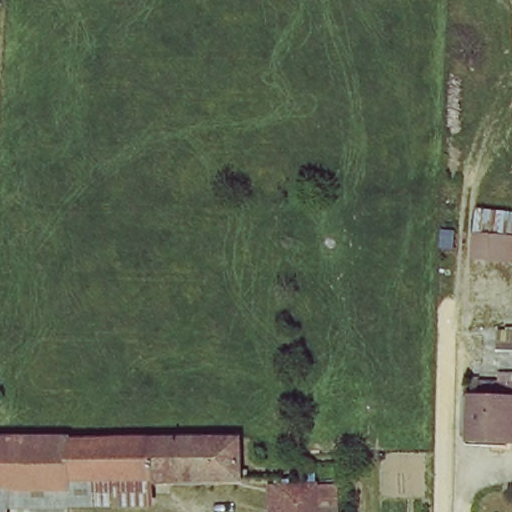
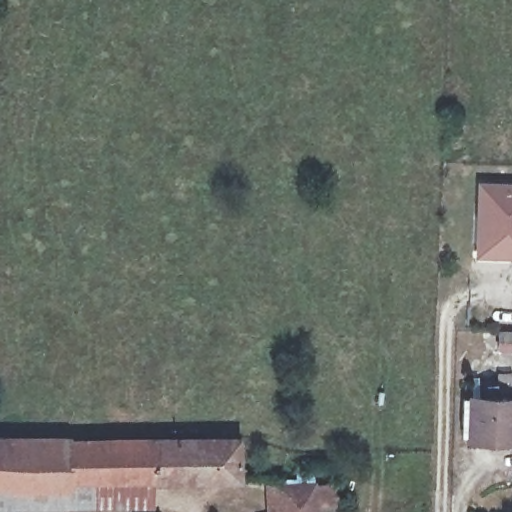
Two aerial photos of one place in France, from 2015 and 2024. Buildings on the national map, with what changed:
new [(474,255),(479,181),(512,182),(512,257),(474,255)]
demolished [(479,259),(481,235),(512,238),(512,262),(479,259)]
unchanged [(507,336),(512,336),(512,355),(506,355),(507,336)]
unchanged [(510,441),(509,444),(464,441),(468,403),(479,404),(481,389),(512,391),(512,441),(510,441)]
unchanged [(53,439),(80,439),(76,477),(74,499),(0,497),(0,438),(19,438),(53,439)]
unchanged [(80,439),(100,440),(190,441),(205,441),(205,479),(76,477),(80,439)]
unchanged [(205,441),(216,441),(241,441),(250,442),(249,469),(249,479),(205,479),(205,441)]
unchanged [(281,484),(317,485),(318,512),(281,512),(281,484)]
unchanged [(318,485),(334,484),(336,512),(320,512),(318,485)]

